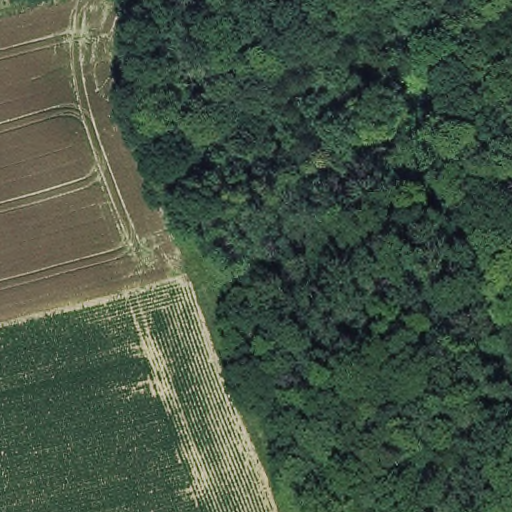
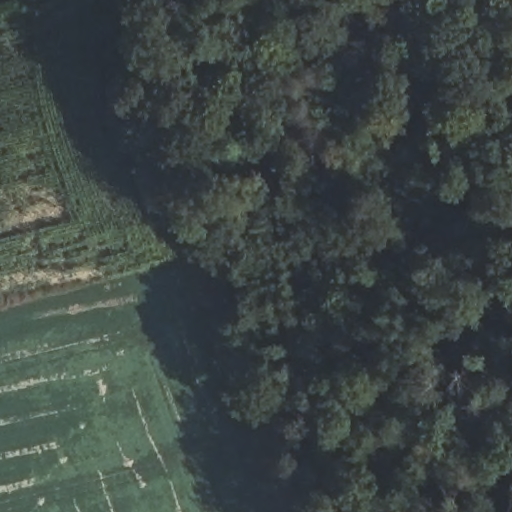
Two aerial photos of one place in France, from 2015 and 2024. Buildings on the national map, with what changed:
[]

